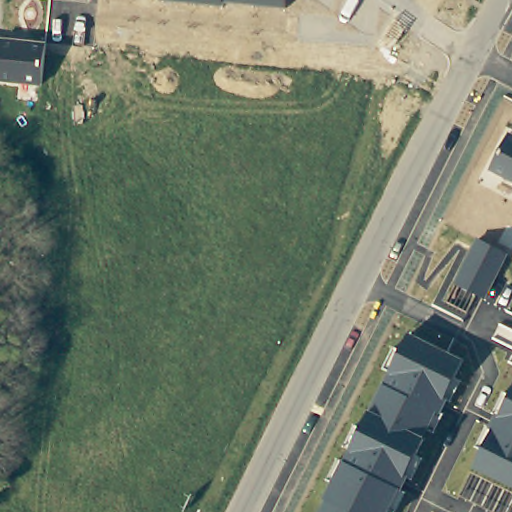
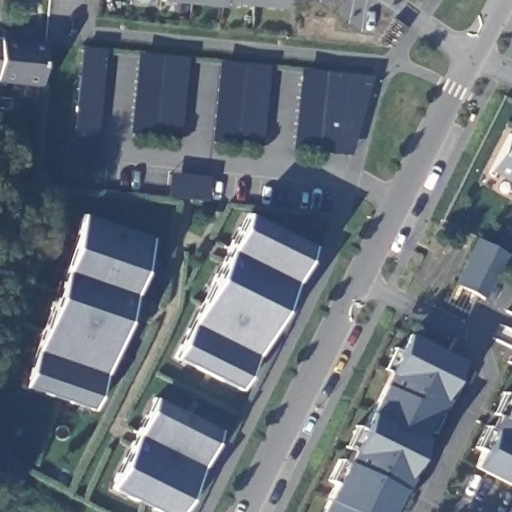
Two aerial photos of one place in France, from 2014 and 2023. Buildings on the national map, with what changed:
unchanged [(284,10),(225,3),(224,7),(161,1),(162,0),(285,0),(284,10)]
unchanged [(42,86),(0,82),(0,39),(47,44),(42,86)]
new [(71,162),(81,48),(105,50),(95,164),(71,162)]
new [(130,133),(140,53),(189,57),(180,138),(130,133)]
new [(211,142),(219,62),(270,66),(262,146),(211,142)]
new [(352,154),(293,149),(301,70),(373,75),(352,154)]
unchanged [(510,133),(512,134),(512,182),(490,170),(510,133)]
new [(171,172),(211,172),(211,194),(168,194),(171,172)]
new [(245,214),(310,247),(240,391),(174,357),(245,214)]
new [(91,409),(23,385),(83,215),(150,239),(91,409)]
unchanged [(486,299),(477,295),(468,313),(446,301),(480,238),(507,255),(486,299)]
unchanged [(462,382),(453,400),(450,399),(436,433),(428,430),(425,439),(418,456),(424,459),(415,479),(408,477),(401,491),(406,494),(398,512),(321,512),(333,485),(327,482),(338,459),(344,462),(350,452),(344,448),(355,425),(362,427),(389,371),(382,367),(393,345),(401,349),(410,332),(464,361),(455,378),(462,382)]
unchanged [(483,450),(475,445),(485,424),(490,427),(496,416),(492,413),(503,389),(510,394),(512,392),(512,486),(475,468),(483,450)]
new [(180,512),(160,512),(110,488),(155,399),(219,429),(180,512)]

